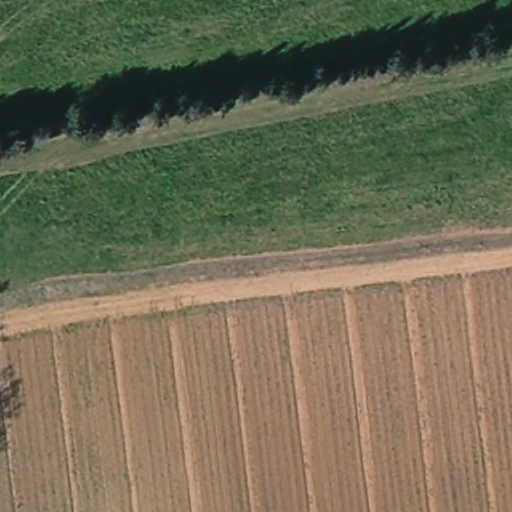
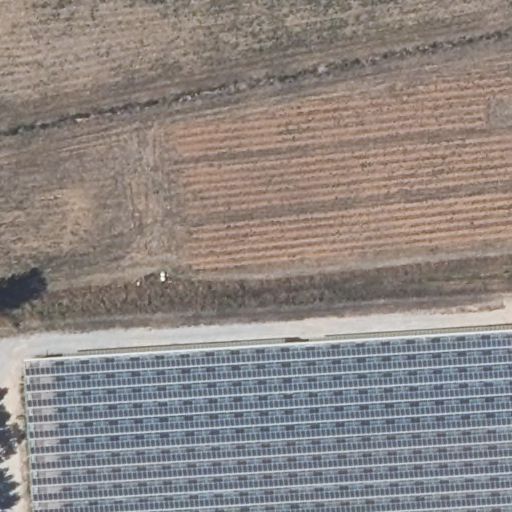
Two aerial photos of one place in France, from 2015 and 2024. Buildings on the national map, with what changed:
new [(512,333),(512,512),(36,512),(27,362),(512,333)]

